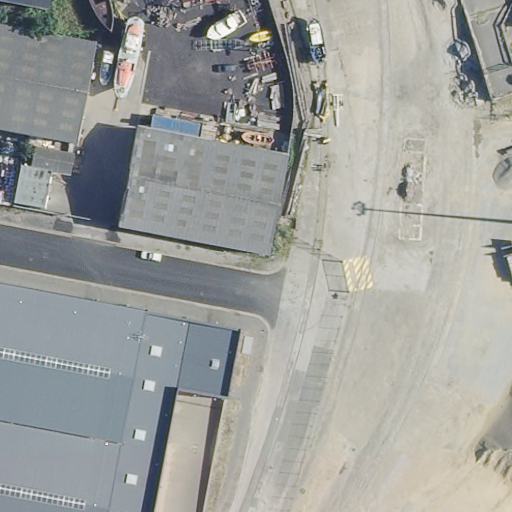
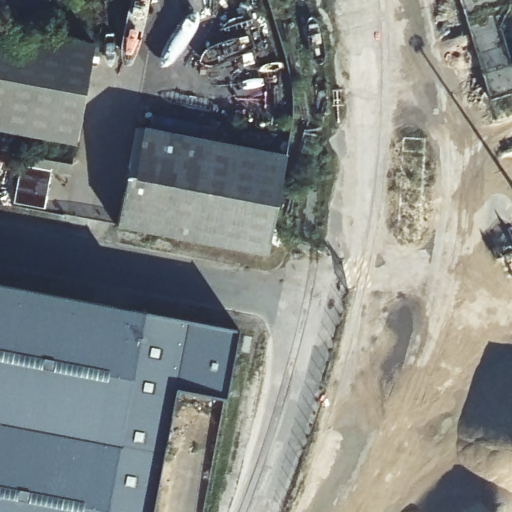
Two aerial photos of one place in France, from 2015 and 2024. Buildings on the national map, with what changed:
unchanged [(45,9),(0,0),(47,0),(45,9)]
unchanged [(0,133),(0,28),(90,46),(75,145),(40,140),(30,138),(0,133)]
unchanged [(112,226),(133,126),(281,160),(261,255),(112,226)]
unchanged [(40,140),(38,151),(77,158),(72,178),(55,175),(47,211),(15,205),(28,149),(30,138),(40,140)]
unchanged [(239,331),(227,397),(177,388),(154,512),(0,512),(0,285),(145,313),(239,331)]

